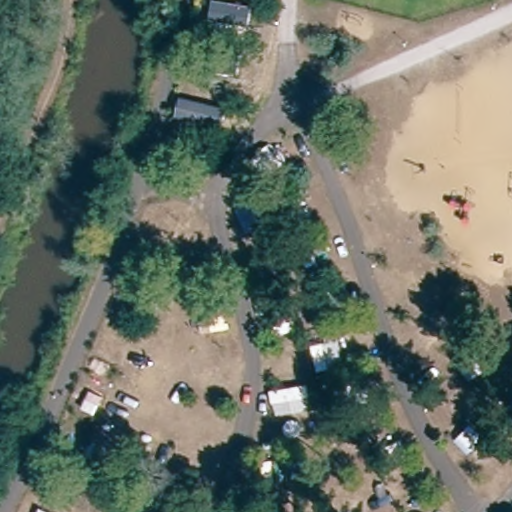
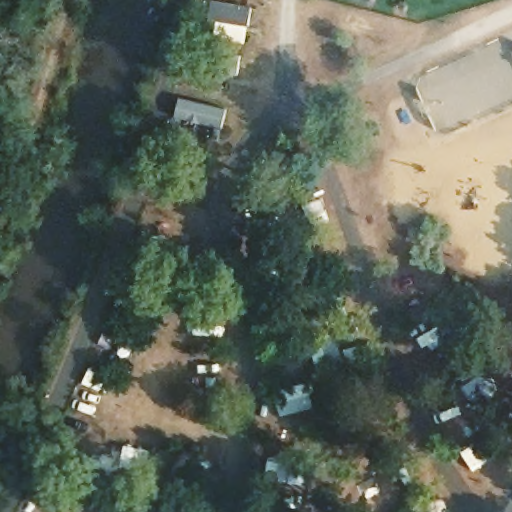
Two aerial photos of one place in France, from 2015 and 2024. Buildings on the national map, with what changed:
unchanged [(252,20),(206,14),(208,0),(254,0),(252,20)]
unchanged [(230,97),(227,122),(184,118),(188,95),(230,97)]

